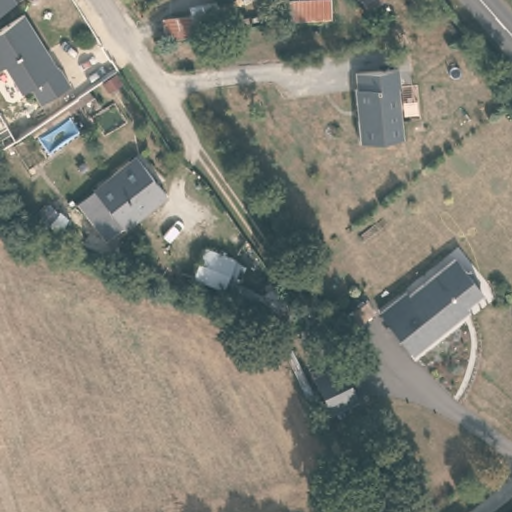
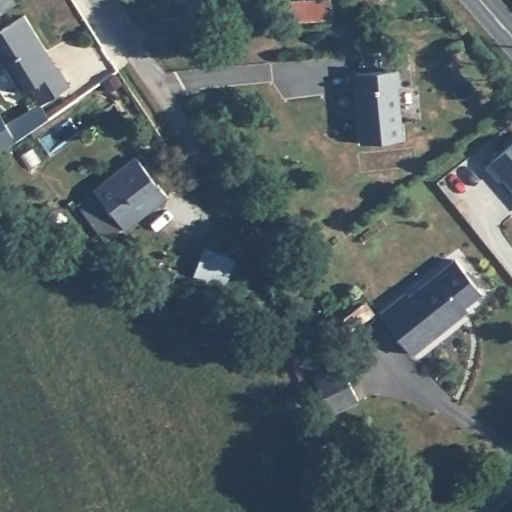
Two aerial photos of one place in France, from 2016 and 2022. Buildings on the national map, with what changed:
unchanged [(15,0),(0,10),(0,0),(15,0)]
unchanged [(335,0),(335,19),(292,21),(291,0),(300,0),(335,0)]
demolished [(372,14),(362,0),(384,0),(386,2),(372,14)]
unchanged [(371,0),(379,0),(375,4),(371,0)]
unchanged [(220,10),(222,30),(168,39),(165,19),(220,10)]
unchanged [(59,64),(70,83),(41,101),(31,84),(22,90),(6,63),(0,66),(0,27),(24,12),(46,48),(57,65),(59,64)]
unchanged [(357,91),(360,90),(357,75),(400,70),(401,88),(400,88),(405,140),(362,144),(360,123),(359,107),(357,91)]
new [(512,145),(512,186),(505,179),(501,182),(488,166),(512,145)]
unchanged [(167,194),(125,228),(96,190),(138,158),(167,194)]
unchanged [(206,247),(239,260),(236,278),(265,294),(268,284),(284,292),(276,314),(194,279),(206,247)]
unchanged [(411,355),(379,314),(410,291),(412,294),(460,258),(471,273),(476,272),(482,280),(480,287),(485,292),(457,313),(460,319),(411,355)]
unchanged [(320,374),(342,363),(360,399),(335,412),(333,413),(315,377),(320,374)]

